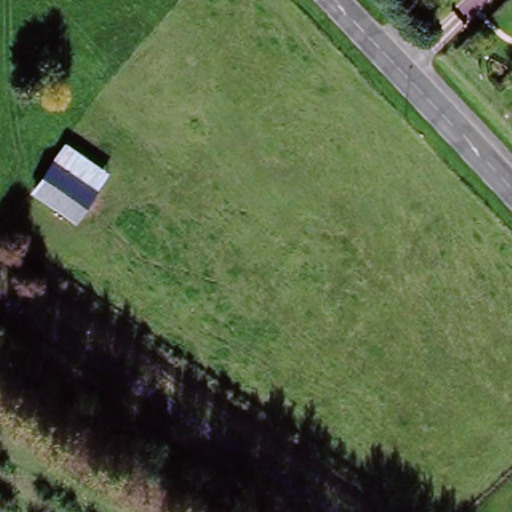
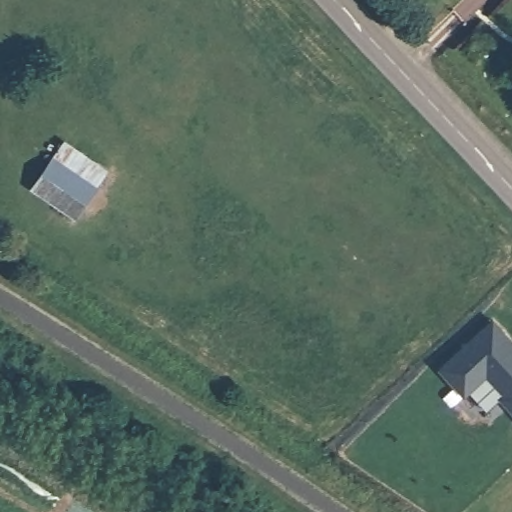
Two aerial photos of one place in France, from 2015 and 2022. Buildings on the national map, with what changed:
unchanged [(100,185),(72,220),(30,191),(54,156),(100,185)]
new [(493,316),(512,337),(512,411),(498,395),(503,391),(487,374),(464,395),(438,366),(493,316)]

